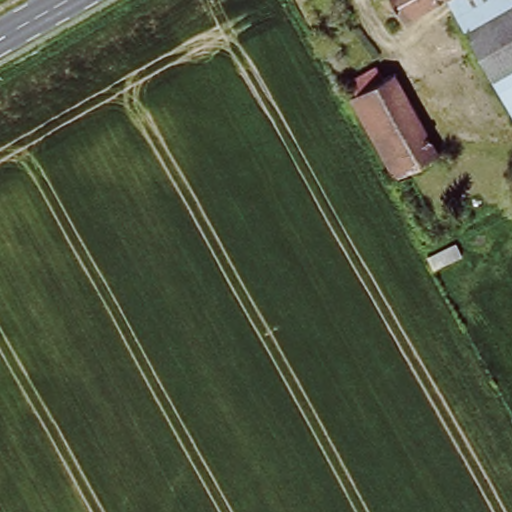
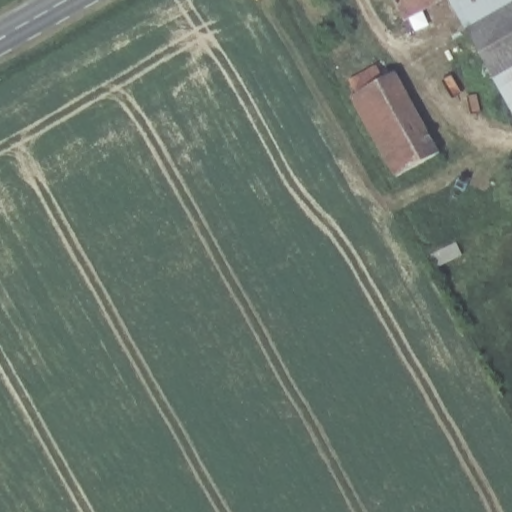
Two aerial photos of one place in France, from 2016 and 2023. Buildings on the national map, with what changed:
unchanged [(391,0),(443,0),(403,22),(391,0)]
unchanged [(512,0),(512,111),(449,0),(512,0)]
unchanged [(390,72),(435,155),(393,179),(345,98),(351,95),(345,82),(371,67),(377,79),(390,72)]

